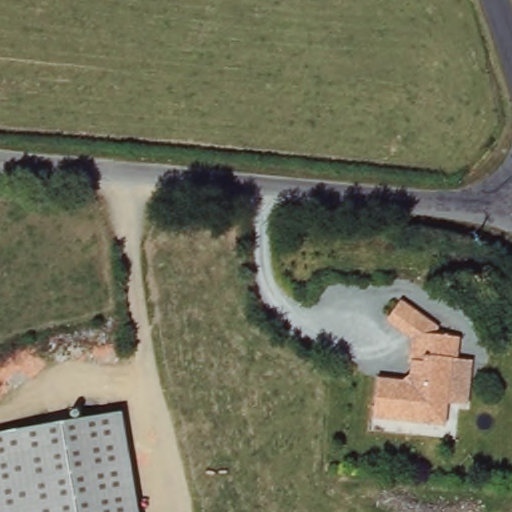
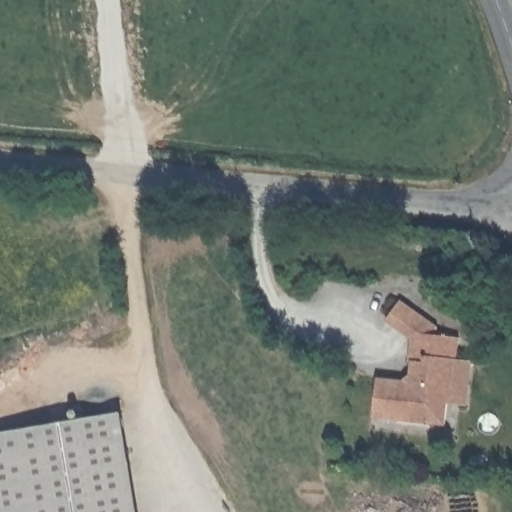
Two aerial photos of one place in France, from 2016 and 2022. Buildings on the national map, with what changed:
unchanged [(447,336),(461,336),(460,362),(454,362),(449,429),(373,423),(377,379),(403,381),(411,373),(412,341),(388,323),(402,299),(447,336)]
unchanged [(134,443),(136,462),(143,512),(20,512),(20,511),(17,489),(8,428),(130,412),(134,443)]

